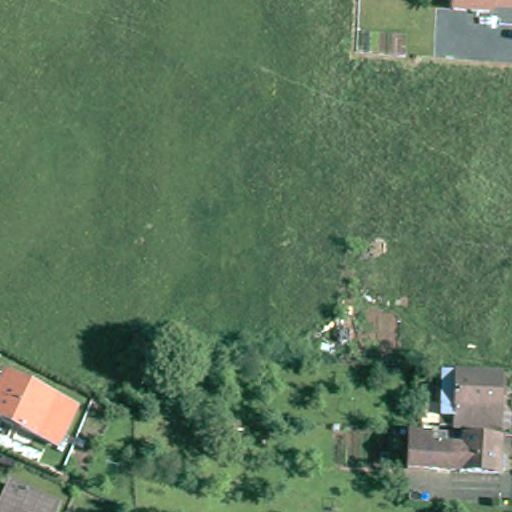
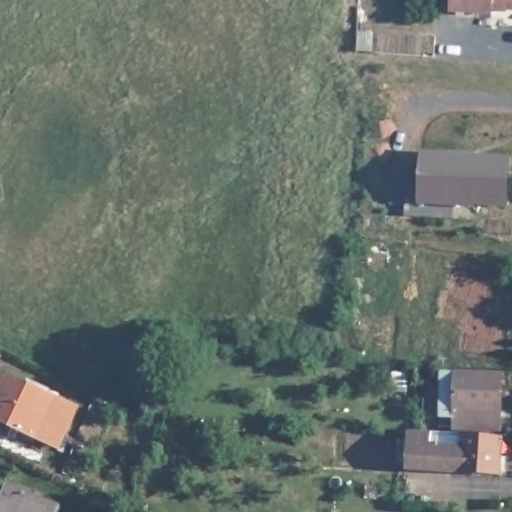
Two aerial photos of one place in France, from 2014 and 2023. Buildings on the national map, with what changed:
unchanged [(494,9),(494,14),(450,11),(451,0),(512,0),(512,10),(494,9)]
new [(510,154),(507,206),(474,205),(420,202),(422,150),(477,152),(510,154)]
unchanged [(452,428),(455,372),(512,374),(512,429),(452,428)]
unchanged [(61,445),(0,417),(0,391),(9,373),(79,406),(61,445)]
unchanged [(510,475),(419,471),(420,433),(512,436),(510,475)]
unchanged [(61,512),(3,512),(15,485),(64,505),(61,512)]

